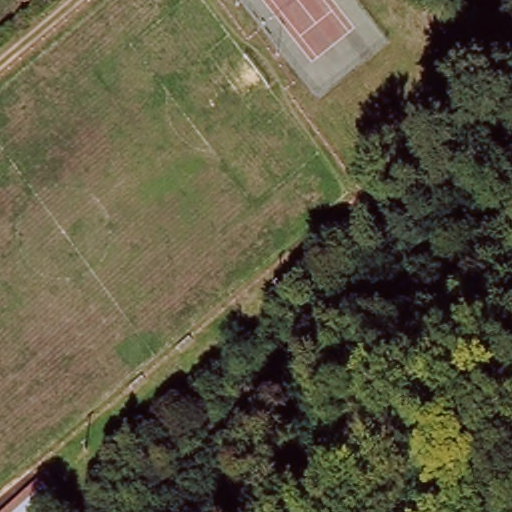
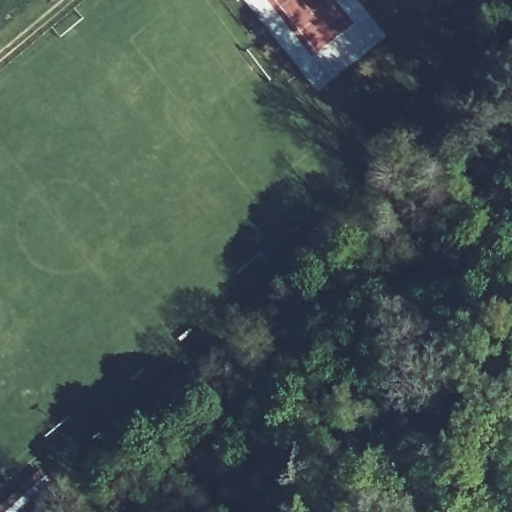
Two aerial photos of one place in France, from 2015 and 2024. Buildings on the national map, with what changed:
unchanged [(0,512),(0,507),(40,472),(44,476),(54,488),(58,492),(60,494),(55,497),(39,511),(38,512),(0,512)]

